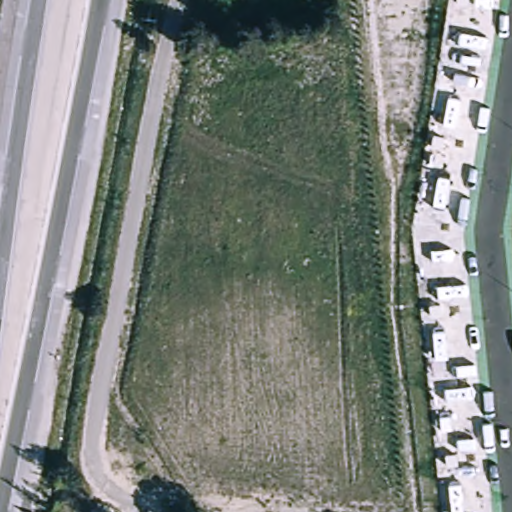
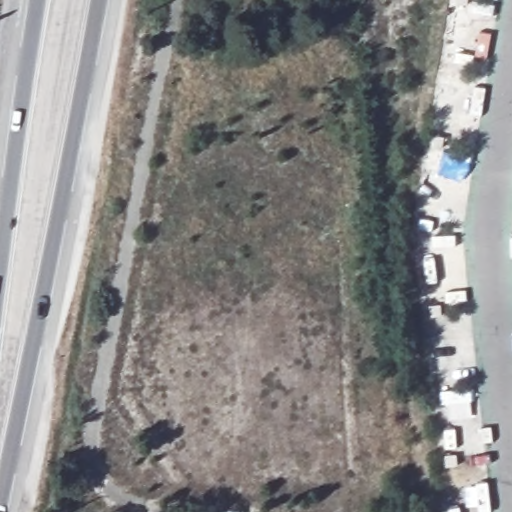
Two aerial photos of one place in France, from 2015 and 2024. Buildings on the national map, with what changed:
[]

